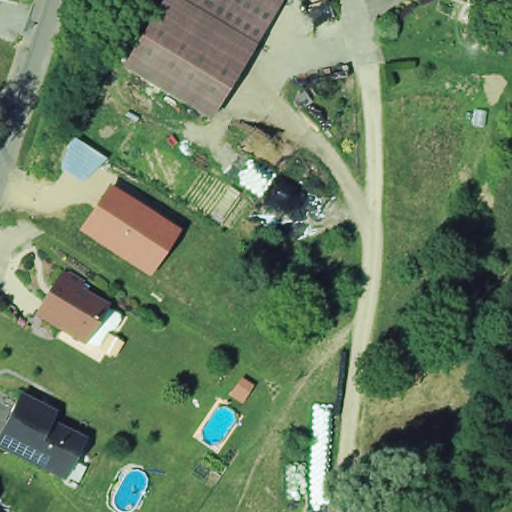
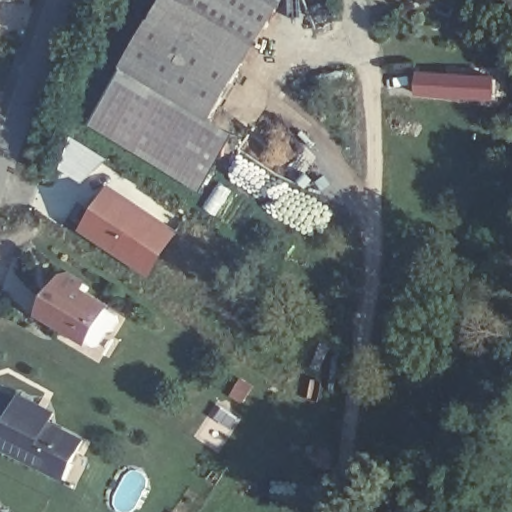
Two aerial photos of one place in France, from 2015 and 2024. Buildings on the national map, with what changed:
unchanged [(120,70),(164,0),(282,0),(207,123),(120,70)]
unchanged [(507,0),(512,0),(512,5),(506,3),(507,0)]
new [(200,193),(87,124),(120,70),(207,123),(210,119),(236,134),(200,193)]
unchanged [(60,167),(73,137),(107,158),(83,182),(60,167)]
unchanged [(80,230),(108,184),(179,230),(149,276),(80,230)]
unchanged [(114,327),(108,337),(102,339),(93,352),(88,352),(78,346),(35,319),(47,298),(57,282),(63,280),(77,290),(73,296),(80,300),(100,312),(99,314),(112,322),(114,327)]
unchanged [(22,397),(37,406),(54,414),(52,419),(49,424),(82,442),(73,457),(8,421),(20,400),(22,397)]
unchanged [(0,445),(0,438),(8,421),(73,457),(64,474),(62,479),(0,445)]

